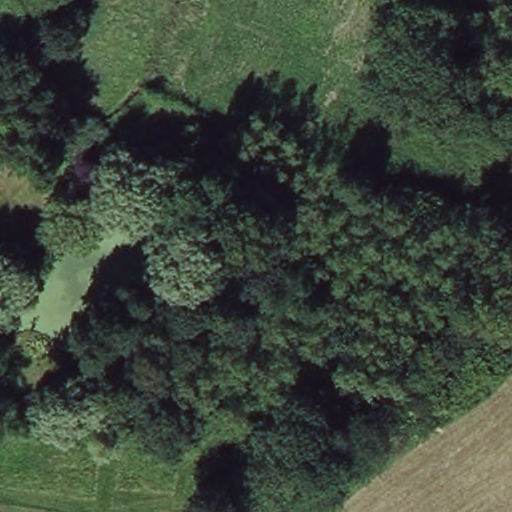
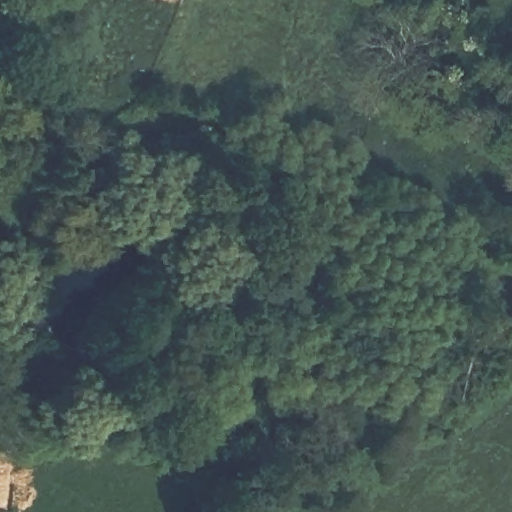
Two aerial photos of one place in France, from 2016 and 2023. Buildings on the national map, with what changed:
unchanged [(490,82),(490,83),(490,84),(490,85),(490,86),(490,87),(489,87),(489,88),(488,89),(488,90),(487,90),(487,91),(486,91),(486,92),(485,92),(485,93),(484,93),(484,94),(483,94),(482,94),(482,95),(481,95),(480,95),(480,96),(479,96),(478,96),(477,96),(476,96),(475,96),(474,96),(473,96),(472,96),(472,95),(471,95),(470,95),(470,94),(469,94),(468,94),(468,93),(467,93),(467,92),(466,92),(465,91),(465,90),(464,90),(464,89),(463,89),(463,88),(463,87),(462,87),(462,86),(462,85),(461,85),(461,84),(461,83),(461,82),(461,81),(461,80),(461,79),(461,78),(461,77),(461,76),(461,75),(462,75),(462,74),(462,73),(462,72),(463,72),(463,71),(464,71),(464,70),(465,70),(465,69),(466,69),(466,68),(466,67),(467,67),(468,67),(469,66),(470,66),(471,66),(471,65),(472,65),(473,65),(474,65),(475,65),(476,65),(477,65),(478,65),(478,66),(479,66),(480,66),(481,67),(482,67),(483,67),(483,68),(484,68),(484,69),(485,69),(485,70),(486,71),(486,72),(487,72),(487,73),(488,73),(488,74),(488,75),(489,75),(489,76),(490,76),(490,77),(490,78),(490,79),(490,80),(490,81),(490,82)]

